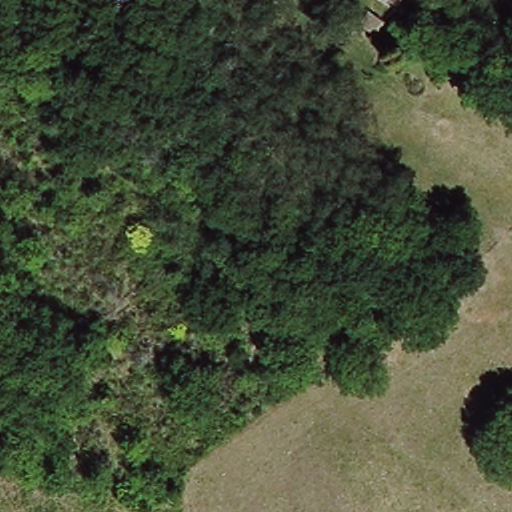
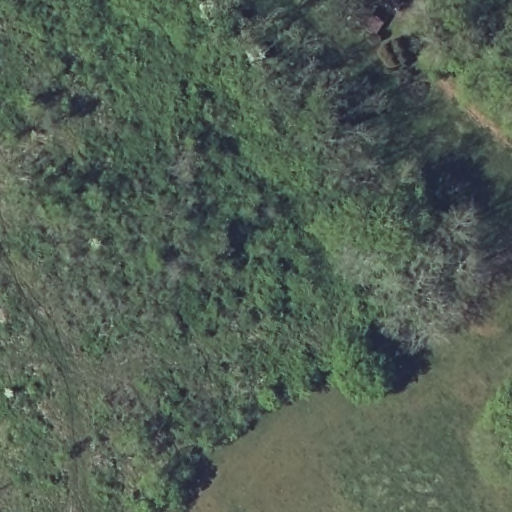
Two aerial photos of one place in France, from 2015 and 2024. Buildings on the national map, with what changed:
unchanged [(423,0),(408,20),(380,0),(423,0)]

